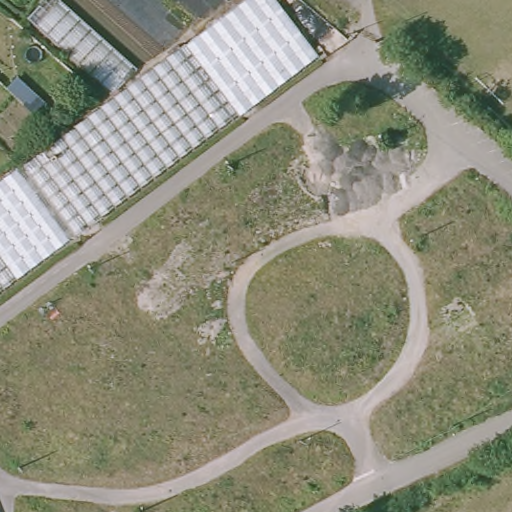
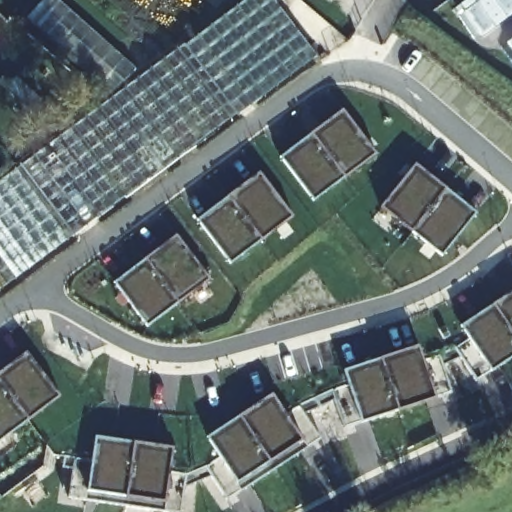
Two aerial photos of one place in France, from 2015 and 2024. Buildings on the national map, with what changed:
unchanged [(109,95),(25,20),(43,0),(62,0),(135,68),(109,95)]
unchanged [(235,116),(184,46),(246,0),(273,0),(316,57),(235,116)]
unchanged [(95,214),(69,233),(42,196),(48,192),(29,168),(49,153),(48,151),(182,51),(231,117),(98,217),(95,214)]
unchanged [(14,80),(31,96),(23,105),(5,89),(14,80)]
new [(376,153),(313,201),(279,156),(341,108),(376,153)]
new [(477,212),(441,256),(379,206),(414,163),(477,212)]
unchanged [(15,166),(70,237),(0,286),(0,177),(15,166)]
new [(293,216),(230,264),(196,219),(259,171),(293,216)]
new [(176,234),(209,278),(146,326),(113,282),(176,234)]
new [(73,467),(63,466),(63,454),(91,456),(95,435),(173,446),(169,470),(216,452),(206,435),(271,392),(285,413),(314,396),(348,384),(343,369),(418,345),(422,357),(453,347),(467,338),(458,323),(512,289),(512,356),(475,381),(459,357),(442,365),(451,392),(343,428),(334,400),(305,413),(321,438),(226,500),(211,476),(184,486),(180,512),(173,512),(68,496),(73,467)]
new [(25,353),(58,397),(0,440),(0,371),(25,353)]

